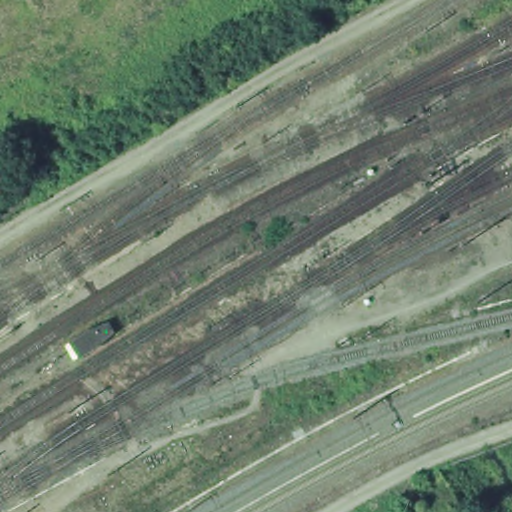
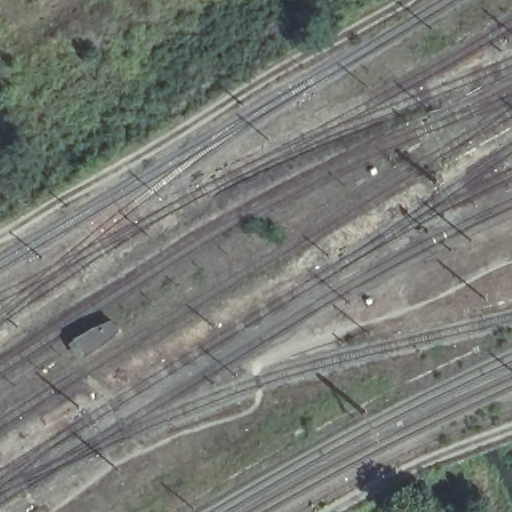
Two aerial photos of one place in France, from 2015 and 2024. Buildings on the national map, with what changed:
unchanged [(99,325),(113,321),(122,335),(85,357),(75,340),(99,325)]

